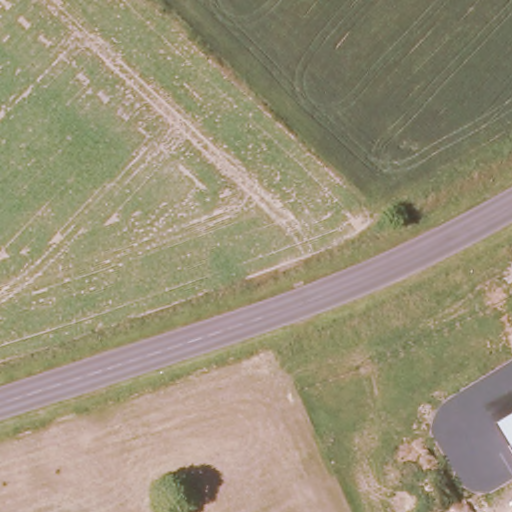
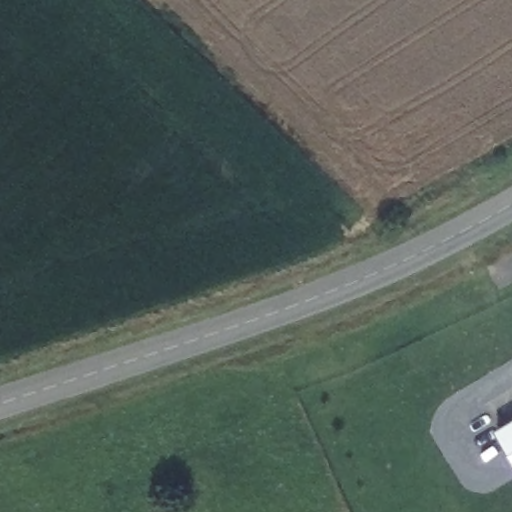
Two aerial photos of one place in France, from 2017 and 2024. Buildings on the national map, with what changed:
unchanged [(498,425),(512,416),(512,448),(498,425)]

